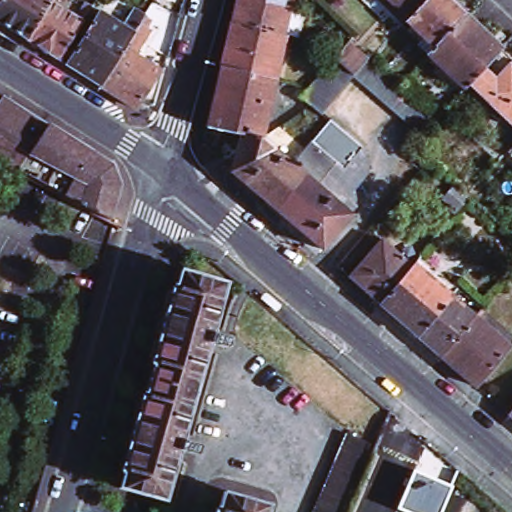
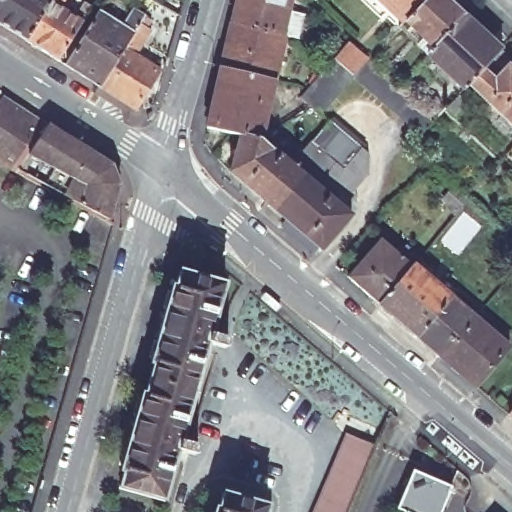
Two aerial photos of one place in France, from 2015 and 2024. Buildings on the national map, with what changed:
unchanged [(0,0),(51,0),(24,43),(0,28),(0,0)]
unchanged [(51,0),(66,0),(60,10),(75,20),(84,6),(90,10),(57,63),(24,43),(51,0)]
unchanged [(239,0),(293,0),(283,41),(232,28),(236,13),(239,0)]
unchanged [(405,27),(375,0),(431,0),(406,26),(405,27)]
unchanged [(464,18),(442,42),(432,52),(406,26),(431,0),(445,0),(453,8),(464,18)]
unchanged [(99,90),(65,68),(98,15),(121,29),(133,11),(145,18),(99,90)]
unchanged [(99,90),(145,18),(150,26),(147,32),(154,35),(137,59),(159,73),(133,112),(99,90)]
unchanged [(427,58),(432,52),(442,42),(464,18),(488,41),(500,53),(472,84),(467,89),(463,93),(427,58)]
unchanged [(228,45),(232,28),(283,41),(286,42),(277,85),(222,71),(228,45)]
unchanged [(372,52),(400,77),(406,82),(437,110),(425,123),(419,129),(352,71),(320,109),(310,100),(301,92),(308,83),(317,72),(325,64),(333,54),(347,38),(366,54),(370,50),(372,52)]
unchanged [(512,65),(512,133),(467,89),(472,84),(500,53),(512,65)]
unchanged [(230,136),(210,130),(210,125),(211,117),(214,100),(222,73),(222,71),(277,85),(261,142),(242,137),(241,139),(230,136)]
unchanged [(0,107),(4,101),(47,128),(30,158),(22,170),(28,174),(26,179),(19,175),(0,165),(0,107)]
unchanged [(266,208),(258,201),(236,180),(231,174),(241,139),(242,137),(261,142),(286,165),(290,169),(320,135),(327,126),(346,143),(363,159),(367,181),(347,205),(337,197),(330,205),(351,224),(320,256),(285,225),(275,216),(266,208)]
unchanged [(67,201),(76,184),(30,158),(47,128),(111,168),(117,188),(108,224),(67,201)]
unchanged [(512,154),(512,164),(507,159),(512,154)]
unchanged [(456,184),(472,197),(457,214),(442,201),(456,184)]
unchanged [(380,240),(411,267),(407,273),(378,306),(368,297),(350,281),(347,279),(380,240)]
unchanged [(413,265),(450,297),(426,325),(417,338),(397,321),(378,306),(407,273),(411,267),(413,265)]
unchanged [(214,339),(232,344),(229,353),(211,347),(183,446),(202,451),(199,459),(180,454),(167,503),(122,491),(127,474),(124,473),(146,396),(149,396),(157,366),(154,366),(176,289),(178,289),(183,273),(229,287),(214,339)]
unchanged [(426,325),(450,297),(455,301),(475,318),(441,358),(427,347),(417,338),(426,325)]
unchanged [(475,318),(507,345),(473,386),(455,370),(441,358),(475,318)]
unchanged [(512,413),(512,423),(507,419),(512,413)]
unchanged [(346,512),(313,512),(345,436),(373,447),(346,512)]
unchanged [(441,512),(397,512),(416,469),(453,484),(441,512)]
unchanged [(271,512),(218,512),(219,510),(221,510),(225,495),(272,508),(271,512)]

